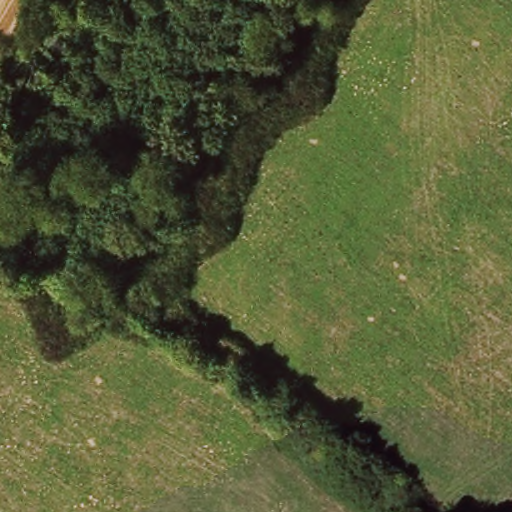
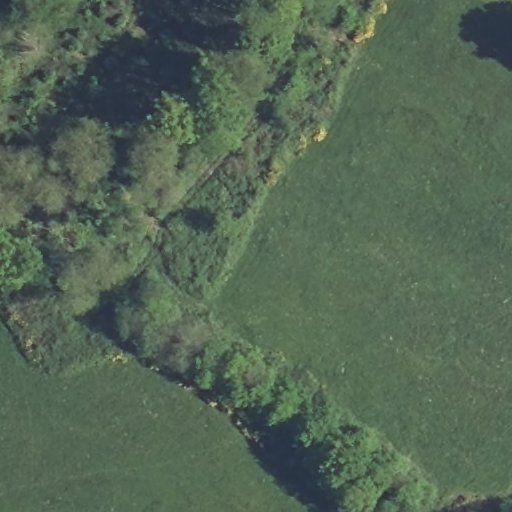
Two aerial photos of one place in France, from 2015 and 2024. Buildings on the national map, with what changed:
[]

